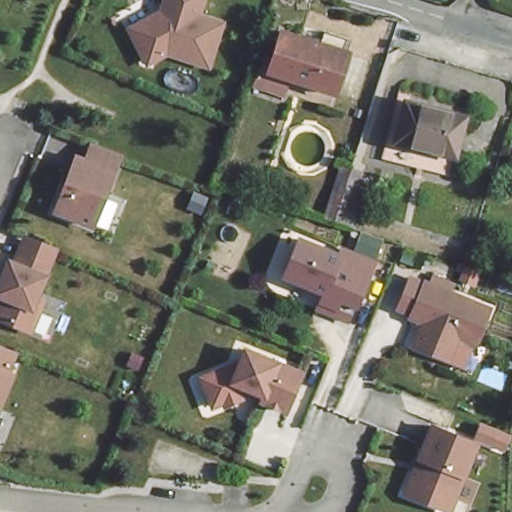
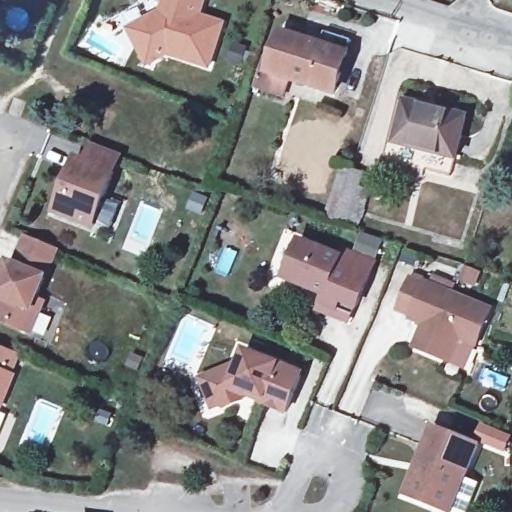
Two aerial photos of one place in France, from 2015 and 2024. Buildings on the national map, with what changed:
unchanged [(147,18),(161,11),(165,0),(204,0),(198,16),(222,24),(207,66),(166,52),(155,57),(141,52),(132,34),(129,27),(147,18)]
unchanged [(268,79),(282,35),(317,46),(321,34),(348,43),(330,98),(268,79)]
unchanged [(454,161),(396,144),(403,115),(406,108),(434,115),(465,124),(454,161)]
unchanged [(88,225),(51,210),(72,156),(82,160),(88,145),(116,156),(109,171),(99,199),(88,225)]
unchanged [(320,219),(338,165),(366,175),(349,231),(320,219)]
unchanged [(32,328),(0,316),(0,308),(6,294),(0,292),(0,279),(2,279),(11,257),(16,260),(22,246),(26,235),(56,248),(52,258),(33,304),(40,308),(32,328)]
unchanged [(336,262),(351,269),(334,308),(318,301),(322,293),(282,277),(297,239),(339,256),(336,262)]
unchanged [(474,345),(457,339),(448,362),(413,347),(423,323),(409,318),(424,283),(429,285),(433,277),(450,284),(447,293),(488,310),(474,345)]
unchanged [(11,353),(6,367),(11,369),(0,395),(0,349),(4,350),(11,353)]
unchanged [(197,381),(208,377),(236,365),(241,352),(298,375),(282,414),(257,404),(260,398),(245,392),(242,396),(236,398),(237,402),(222,409),(220,406),(214,408),(210,410),(197,381)]
unchanged [(421,458),(434,426),(478,444),(451,511),(414,496),(406,493),(421,458)]

